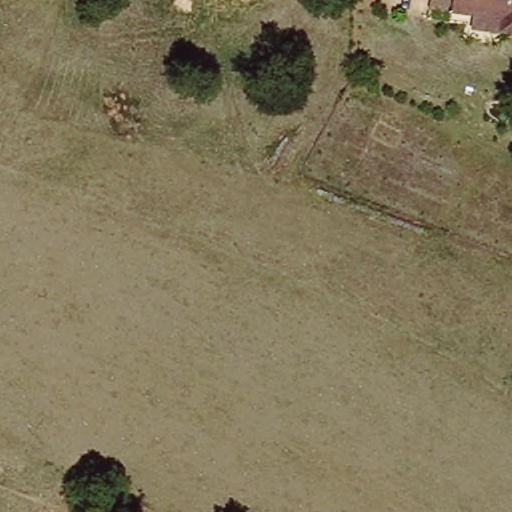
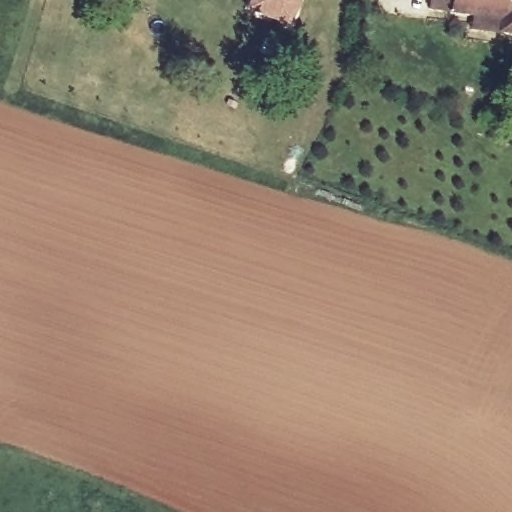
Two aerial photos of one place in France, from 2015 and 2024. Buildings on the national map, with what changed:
new [(251,0),(300,0),(288,28),(247,11),(251,0)]
unchanged [(428,8),(429,0),(512,0),(512,34),(470,29),(472,14),(428,8)]

